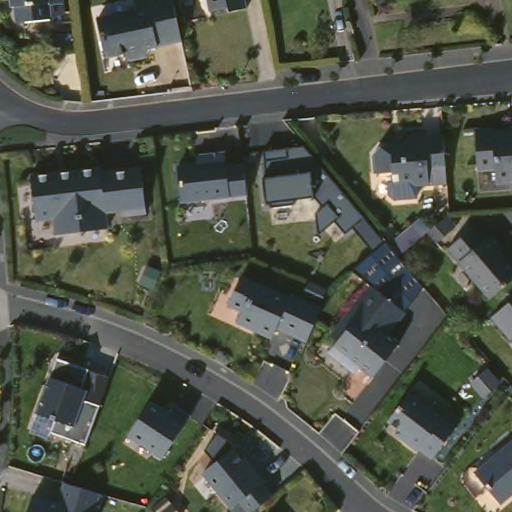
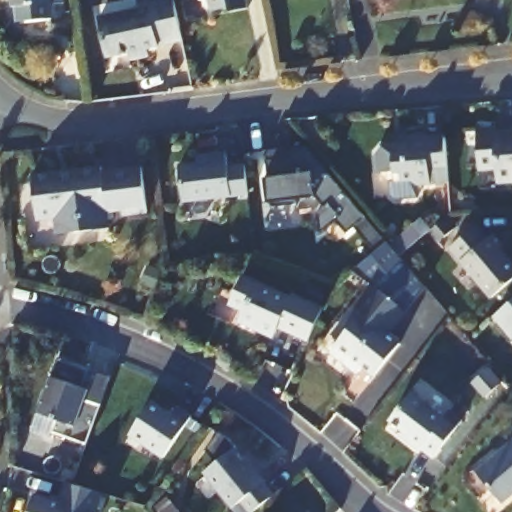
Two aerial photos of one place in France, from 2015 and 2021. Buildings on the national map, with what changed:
unchanged [(59,13),(60,16),(32,20),(31,16),(24,17),(22,5),(17,5),(16,0),(68,0),(70,12),(59,13)]
unchanged [(143,10),(141,0),(177,0),(181,23),(185,42),(151,49),(152,57),(134,61),(132,54),(110,58),(102,19),(143,10)]
unchanged [(234,14),(231,4),(212,8),(211,0),(249,0),(251,10),(234,14)]
unchanged [(501,171),(483,172),(480,131),(500,130),(500,136),(512,136),(512,182),(502,182),(501,171)]
unchanged [(400,199),(396,195),(395,181),(400,181),(400,173),(381,173),(380,153),(386,145),(409,144),(415,134),(432,132),(432,137),(449,135),(452,184),(422,186),(423,197),(400,199)]
unchanged [(364,220),(425,287),(407,308),(373,282),(355,269),(372,252),(351,227),(345,232),(335,220),(320,232),(315,214),(320,205),(313,197),(267,202),(264,176),(268,175),(265,151),(305,147),(364,220)]
unchanged [(179,165),(196,165),(195,155),(224,152),(226,165),(242,165),(248,197),(180,204),(179,165)]
unchanged [(104,162),(105,167),(144,162),(150,209),(125,211),(123,196),(109,198),(111,224),(91,226),(90,215),(84,165),(104,162)]
unchanged [(57,167),(58,170),(77,167),(76,165),(84,165),(90,215),(91,226),(60,230),(57,213),(40,215),(35,170),(57,167)]
unchanged [(430,230),(443,217),(448,214),(458,225),(453,229),(439,241),(430,230)]
unchanged [(390,244),(415,224),(423,235),(400,255),(390,244)]
unchanged [(487,238),(493,233),(503,245),(501,247),(512,261),(512,279),(491,295),(451,246),(476,225),(487,238)]
unchanged [(146,286),(131,280),(140,261),(154,268),(146,286)]
unchanged [(309,340),(308,340),(278,327),(276,333),(263,327),(256,330),(239,321),(244,311),(230,305),(243,275),(290,297),(292,293),(323,308),(309,340)]
unchanged [(373,282),(407,308),(390,331),(401,340),(376,373),(365,364),(360,371),(332,350),(340,338),(334,333),(373,282)]
unchanged [(512,307),(512,335),(498,320),(512,307)]
unchanged [(81,393),(102,400),(89,440),(54,428),(59,415),(40,409),(60,353),(91,365),(81,393)]
unchanged [(423,447),(421,450),(408,438),(411,434),(391,419),(412,391),(445,416),(451,408),(465,418),(435,456),(423,447)]
unchanged [(134,430),(155,398),(175,411),(180,403),(195,412),(168,453),(134,430)]
unchanged [(512,490),(501,499),(475,468),(512,436),(512,490)]
unchanged [(234,448),(244,461),(251,459),(275,492),(254,512),(247,512),(240,505),(232,510),(203,472),(234,448)]
unchanged [(75,480),(104,489),(97,512),(30,512),(36,491),(62,498),(68,478),(75,480)]

